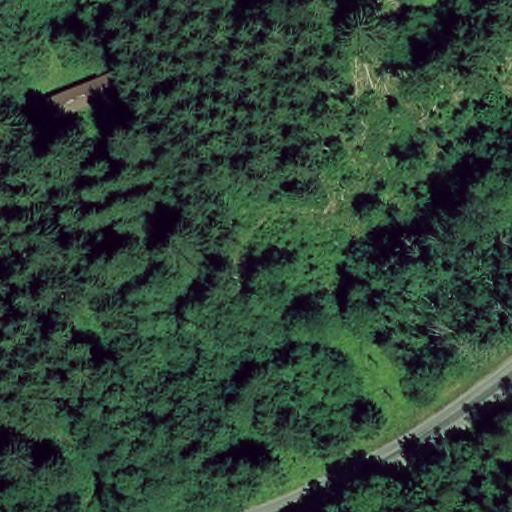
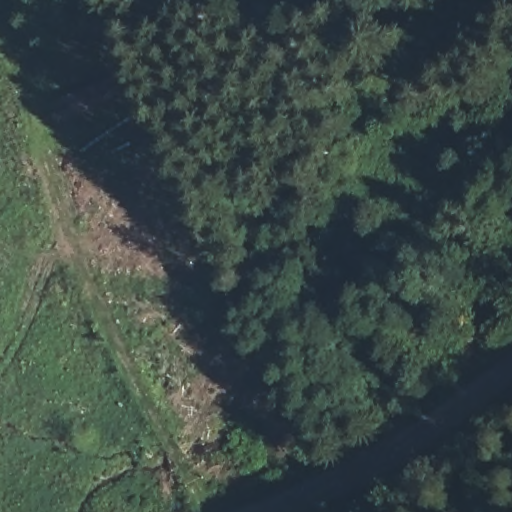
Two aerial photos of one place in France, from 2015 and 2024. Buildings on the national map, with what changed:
unchanged [(47,102),(117,72),(126,101),(55,127),(47,102)]

